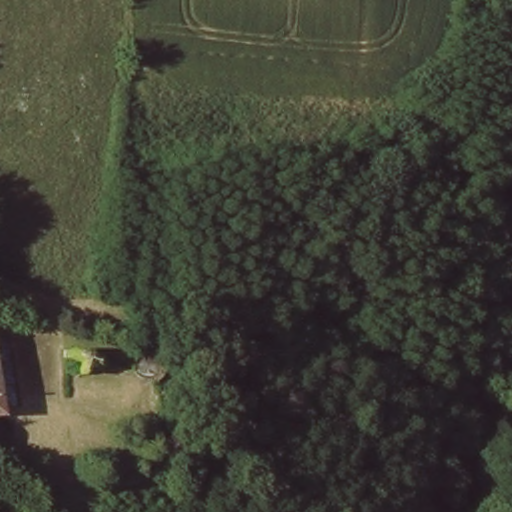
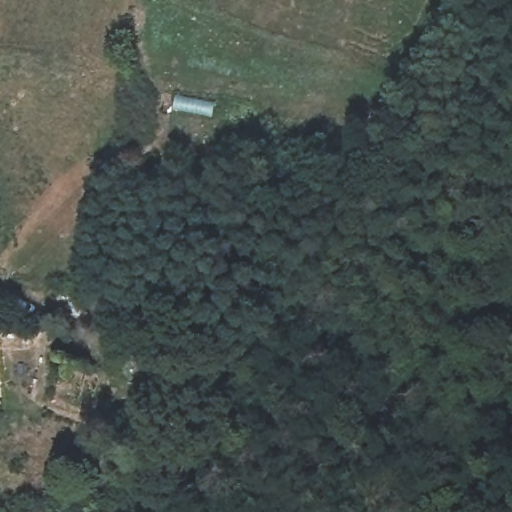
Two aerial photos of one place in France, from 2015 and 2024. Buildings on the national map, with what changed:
unchanged [(0,402),(3,424),(0,424),(0,402)]

